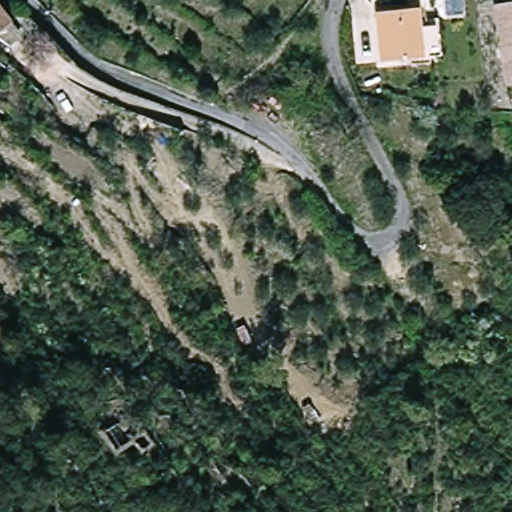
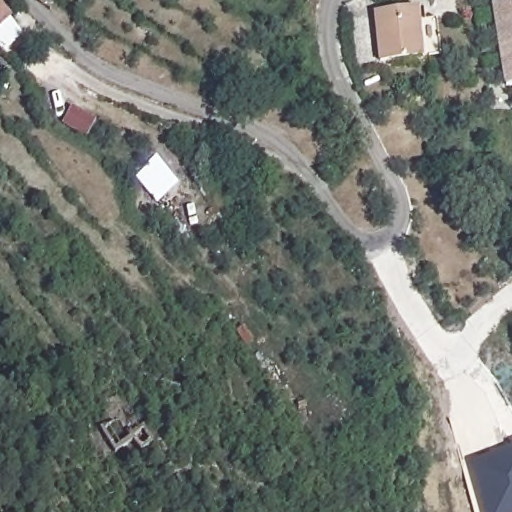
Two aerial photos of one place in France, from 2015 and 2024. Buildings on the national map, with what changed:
unchanged [(0,0),(2,0),(17,18),(0,34),(0,0)]
unchanged [(510,85),(496,4),(512,2),(512,85),(510,85)]
unchanged [(385,58),(377,12),(426,3),(432,51),(385,58)]
new [(512,450),(512,512),(487,512),(472,462),(512,450)]

